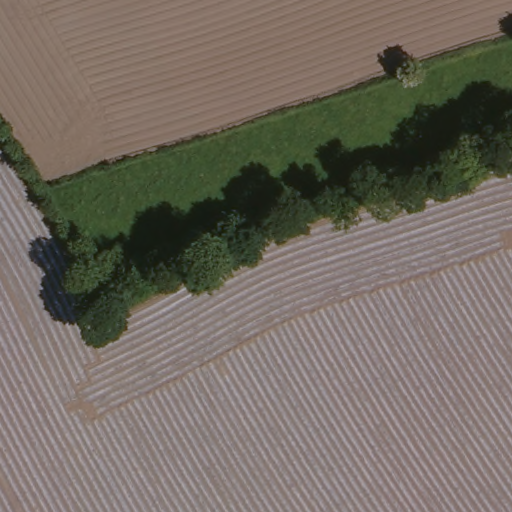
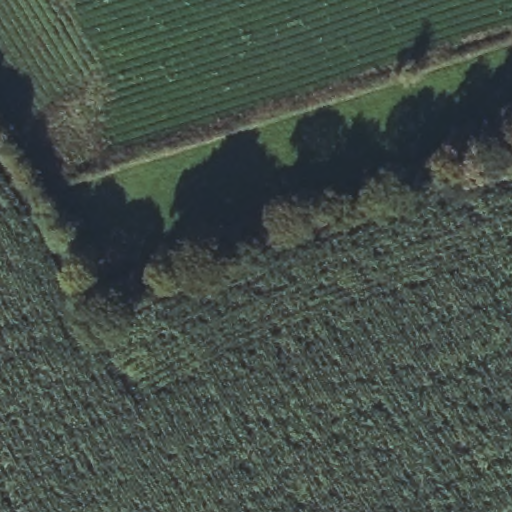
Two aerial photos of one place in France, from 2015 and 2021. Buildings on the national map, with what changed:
[]

